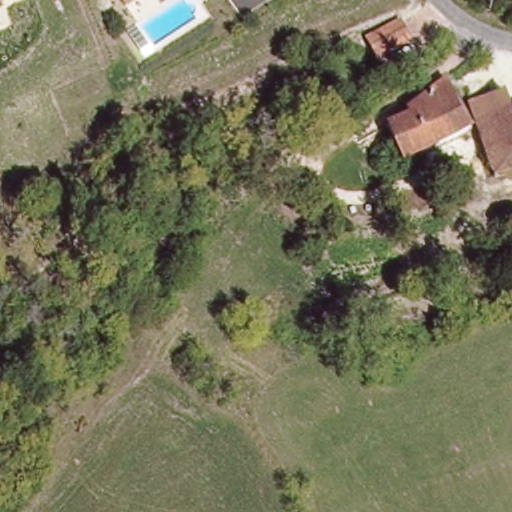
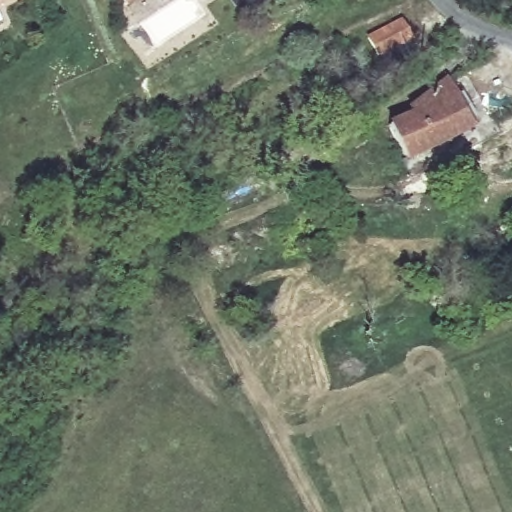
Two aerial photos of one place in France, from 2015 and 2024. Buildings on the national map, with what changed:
unchanged [(0,5),(0,0),(11,0),(0,5)]
unchanged [(399,23),(409,42),(379,60),(369,41),(399,23)]
demolished [(502,94),(512,121),(512,180),(499,184),(474,110),(484,106),(480,95),(493,85),(507,81),(511,91),(502,94)]
unchanged [(417,117),(409,107),(445,84),(468,130),(444,144),(407,165),(390,132),(417,117)]

